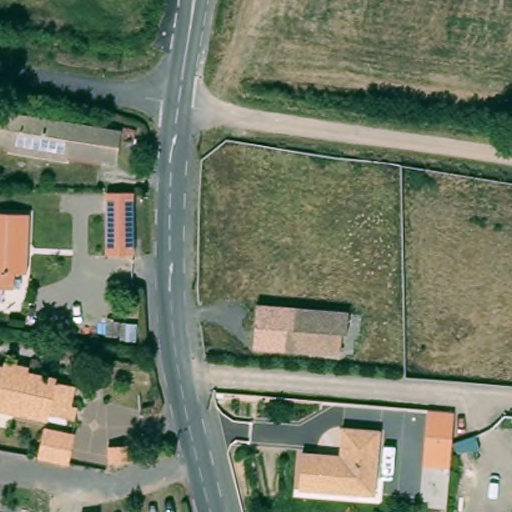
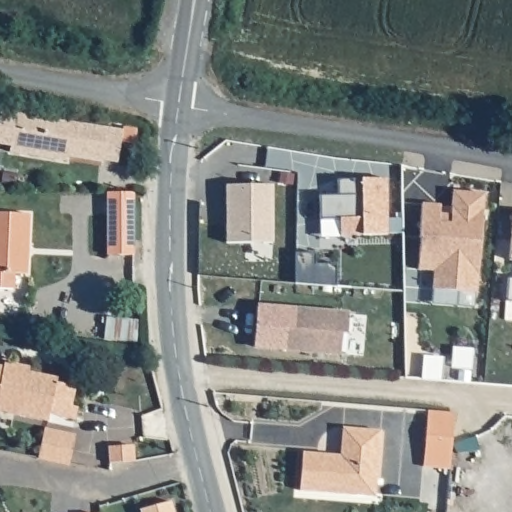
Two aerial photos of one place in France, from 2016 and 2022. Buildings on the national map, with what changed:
unchanged [(110,118),(129,121),(125,145),(109,142),(105,164),(36,153),(0,146),(0,111),(108,129),(110,118)]
new [(338,193),(337,178),(386,177),(387,233),(340,234),(339,218),(320,218),(319,194),(338,193)]
new [(226,183),(273,183),(273,240),(226,240),(226,221),(226,202),(226,183)]
new [(432,288),(433,271),(418,270),(422,202),(440,204),(439,212),(450,214),(452,189),(484,194),(476,292),(432,288)]
unchanged [(131,195),(129,255),(101,252),(105,193),(131,195)]
unchanged [(11,275),(8,290),(0,289),(0,214),(31,221),(27,241),(21,276),(11,275)]
new [(508,258),(512,225),(512,259),(508,258)]
new [(505,300),(507,277),(512,277),(512,301),(505,300)]
unchanged [(253,346),(257,304),(349,311),(346,333),(342,333),(342,350),(253,346)]
unchanged [(28,376),(44,379),(38,408),(21,405),(20,414),(0,410),(0,366),(29,371),(28,376)]
unchanged [(21,405),(38,408),(44,379),(75,385),(70,406),(76,408),(74,418),(49,413),(47,421),(20,414),(21,405)]
unchanged [(458,410),(453,465),(426,463),(431,407),(458,410)]
unchanged [(68,466),(35,459),(43,425),(76,432),(68,466)]
unchanged [(356,494),(297,489),(301,451),(339,455),(342,427),(378,430),(375,477),(373,496),(356,494)]

